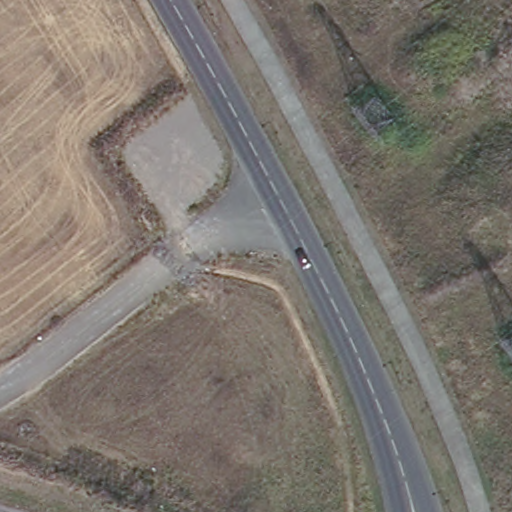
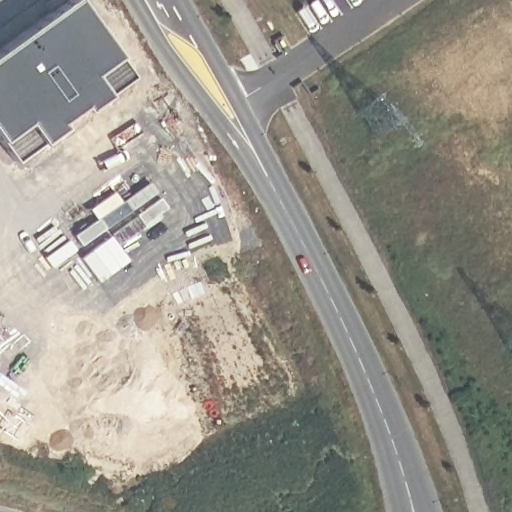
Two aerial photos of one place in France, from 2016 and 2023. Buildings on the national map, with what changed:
new [(131,75),(84,110),(80,105),(57,121),(60,125),(14,160),(0,141),(0,48),(64,0),(76,0),(131,75)]

